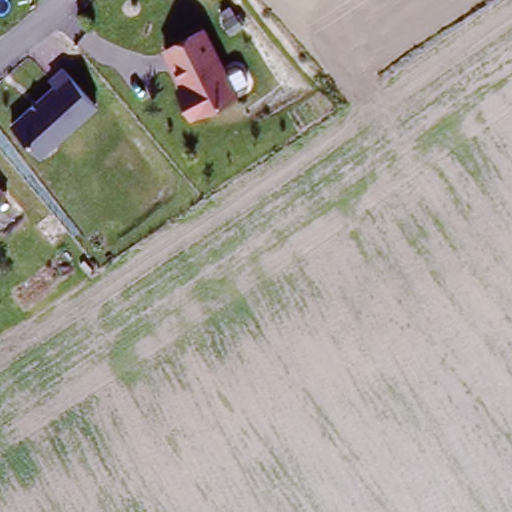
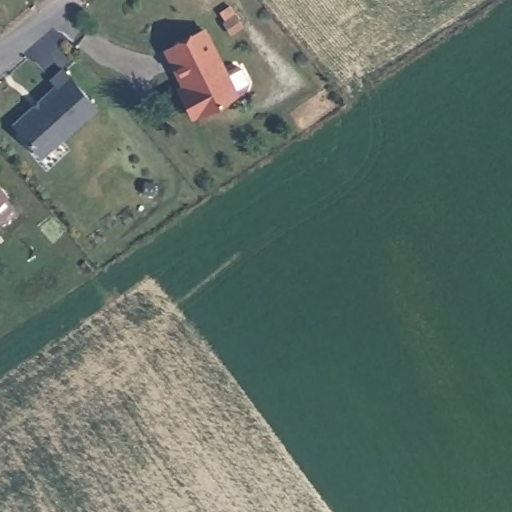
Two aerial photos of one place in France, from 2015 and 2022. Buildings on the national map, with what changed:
unchanged [(207,29),(233,100),(194,115),(167,45),(207,29)]
unchanged [(17,129),(59,90),(54,83),(67,74),(100,112),(46,161),(17,129)]
unchanged [(0,191),(7,199),(0,204),(0,191)]

